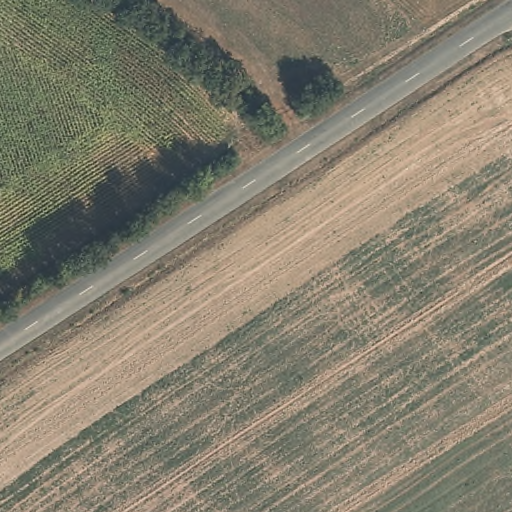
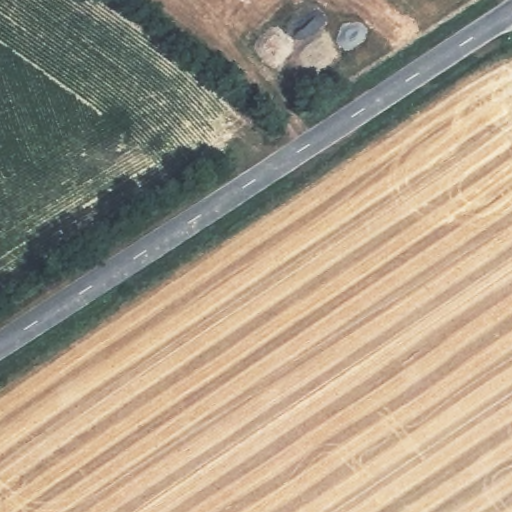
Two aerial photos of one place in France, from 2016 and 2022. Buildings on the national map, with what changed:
[]

